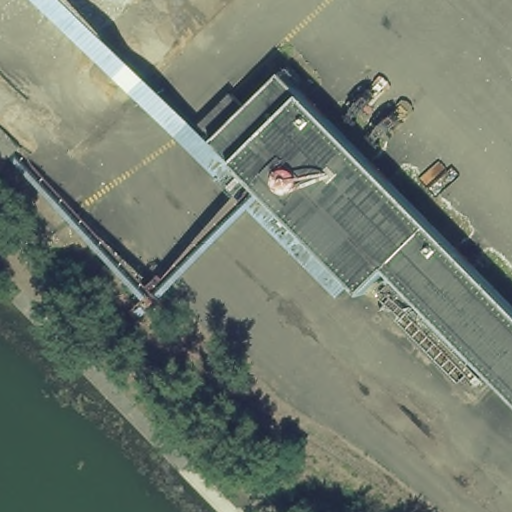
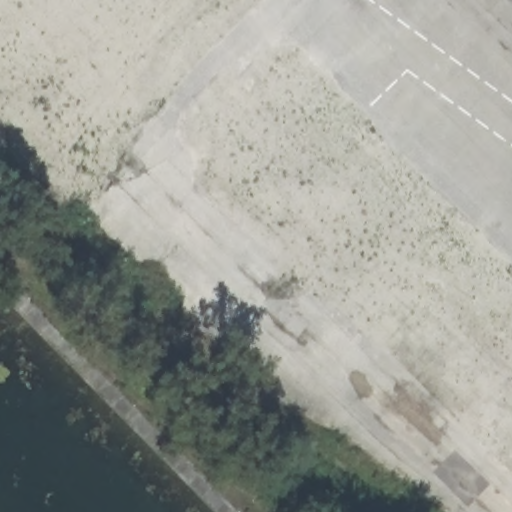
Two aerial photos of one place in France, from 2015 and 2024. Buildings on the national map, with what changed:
demolished [(309,96),(512,301),(512,424),(379,280),(354,301),(260,197),(213,146),(287,74),(309,96)]
new [(512,408),(382,276),(356,300),(205,149),(275,80),(512,320),(512,408)]
new [(21,148),(8,160),(0,152),(0,127),(21,148)]

